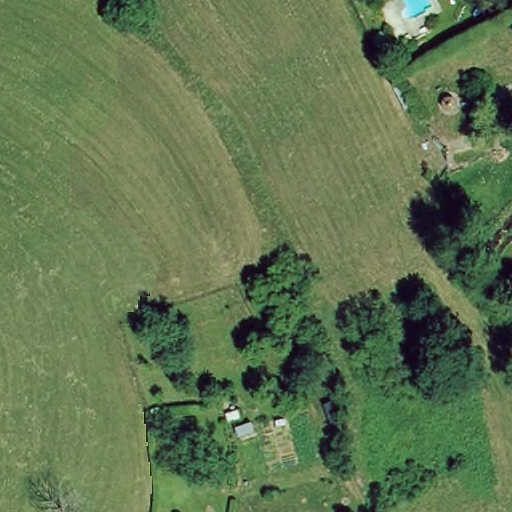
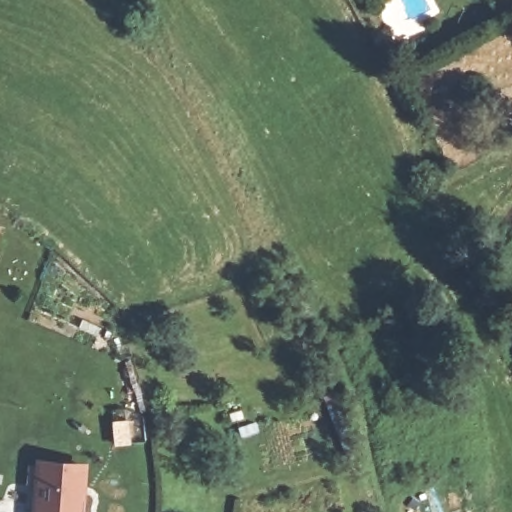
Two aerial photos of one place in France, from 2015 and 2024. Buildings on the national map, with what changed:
new [(25,483),(27,462),(35,463),(35,458),(87,462),(82,512),(31,512),(33,483),(25,483)]

